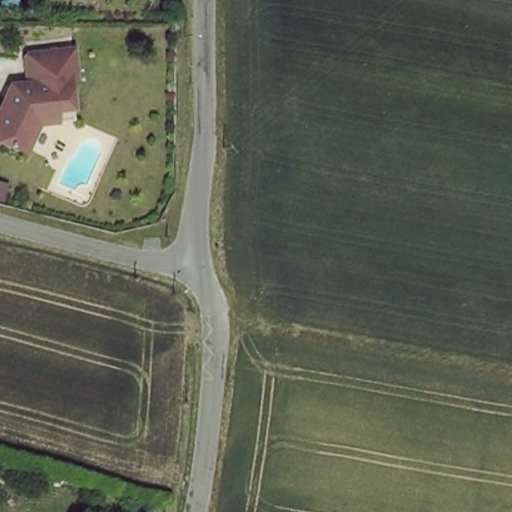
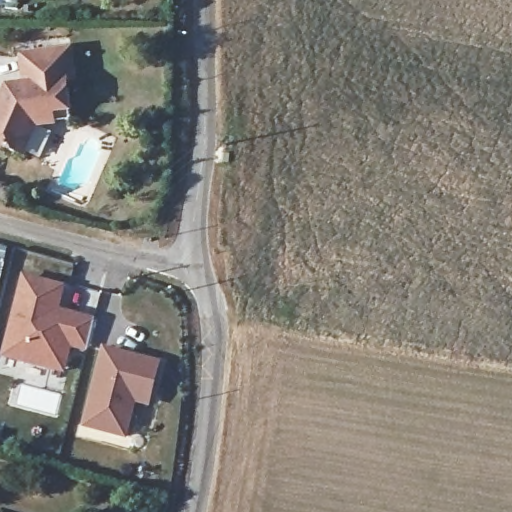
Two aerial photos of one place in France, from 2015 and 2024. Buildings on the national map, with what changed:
unchanged [(38,119),(24,149),(0,136),(0,106),(13,80),(28,80),(25,50),(73,44),(75,74),(68,74),(71,103),(72,115),(55,117),(38,119)]
new [(65,287),(60,309),(96,319),(87,352),(71,349),(65,373),(0,358),(22,275),(65,287)]
new [(149,407),(135,403),(125,440),(81,429),(103,346),(162,361),(149,407)]

